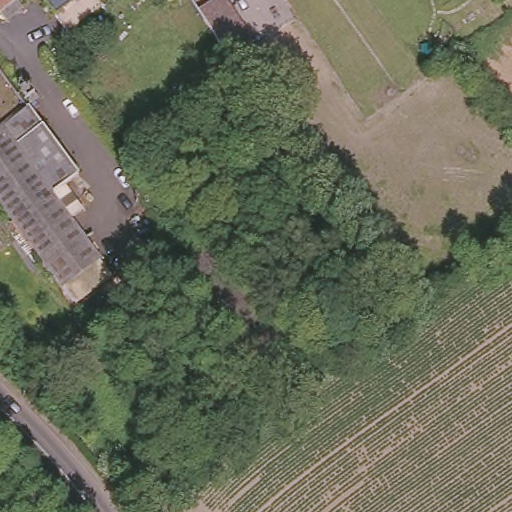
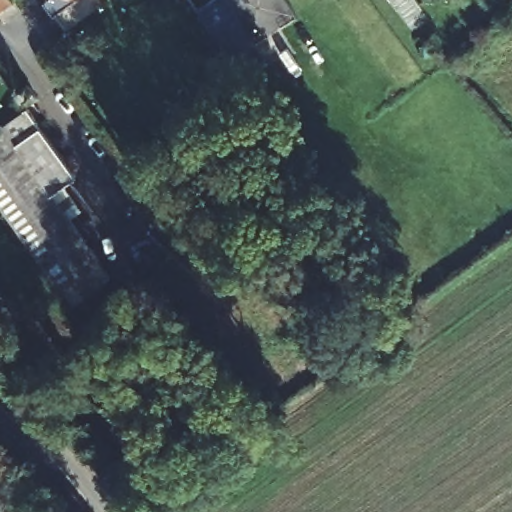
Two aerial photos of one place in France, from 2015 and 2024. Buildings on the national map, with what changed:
unchanged [(6,20),(0,12),(0,0),(16,0),(23,7),(6,20)]
unchanged [(57,0),(66,0),(61,4),(57,0)]
unchanged [(233,59),(204,16),(223,4),(251,46),(233,59)]
unchanged [(29,104),(25,99),(26,97),(21,90),(29,85),(38,97),(29,104)]
unchanged [(78,175),(67,183),(85,209),(71,218),(115,280),(73,310),(0,204),(0,124),(29,104),(78,175)]
unchanged [(178,485),(156,498),(146,483),(139,473),(158,460),(164,472),(166,471),(178,485)]

